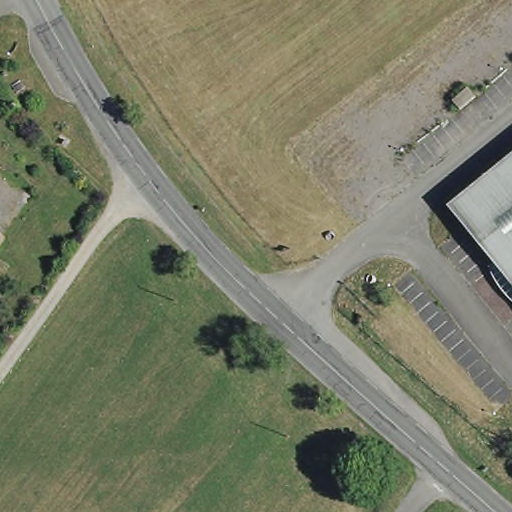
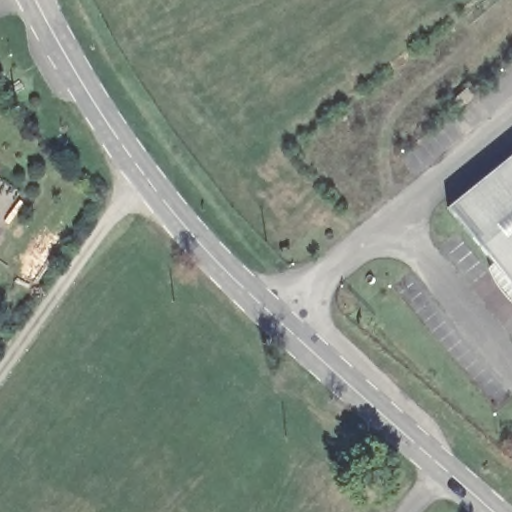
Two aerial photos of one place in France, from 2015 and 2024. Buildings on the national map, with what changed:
unchanged [(446,213),(512,159),(512,293),(446,213)]

